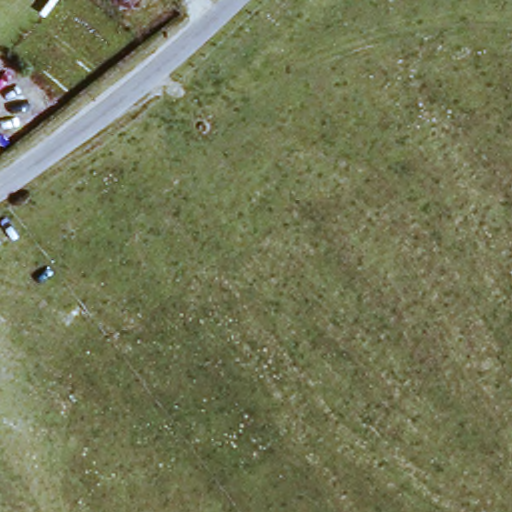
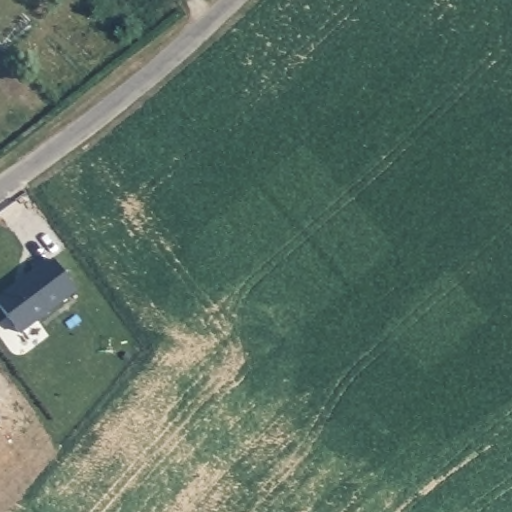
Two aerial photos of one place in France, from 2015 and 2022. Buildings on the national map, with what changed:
new [(0,310),(0,296),(39,268),(40,270),(52,260),(75,291),(18,334),(0,310)]

